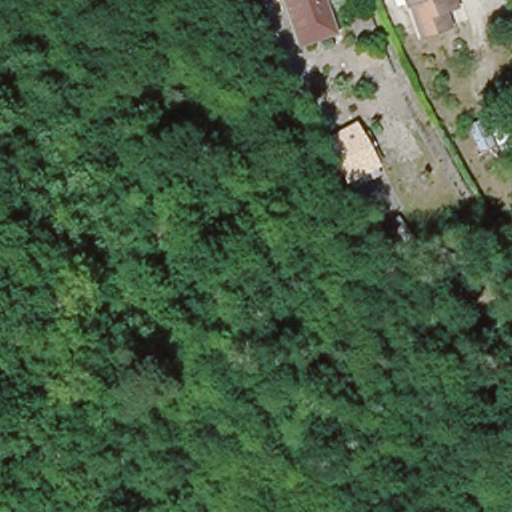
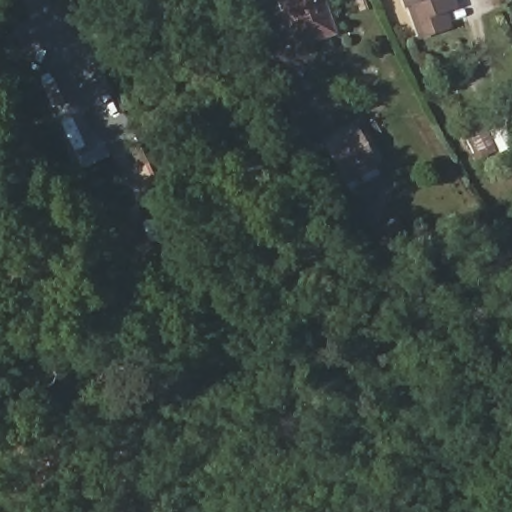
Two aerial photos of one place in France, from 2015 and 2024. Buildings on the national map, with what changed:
unchanged [(334,31),(307,40),(299,43),(284,0),(324,0),(334,31)]
unchanged [(447,4),(452,25),(420,36),(408,0),(454,0),(447,4)]
unchanged [(346,120),(370,161),(367,162),(341,177),(317,136),(344,121),(346,120)]

